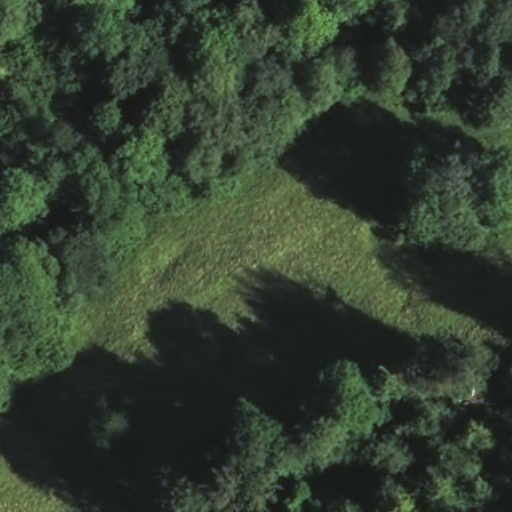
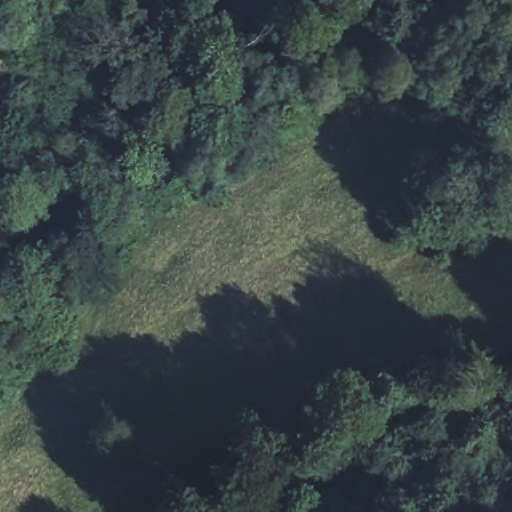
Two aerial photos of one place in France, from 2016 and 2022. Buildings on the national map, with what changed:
[]

